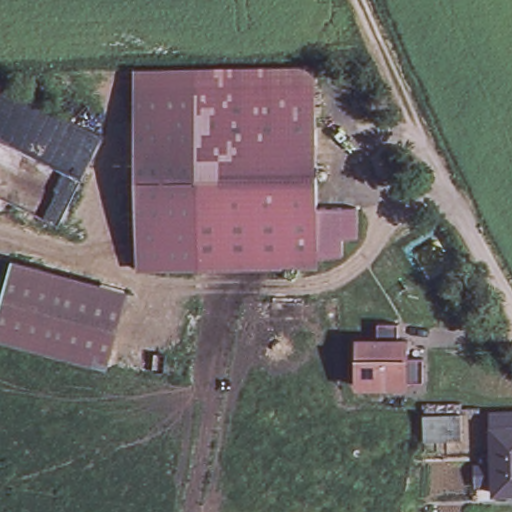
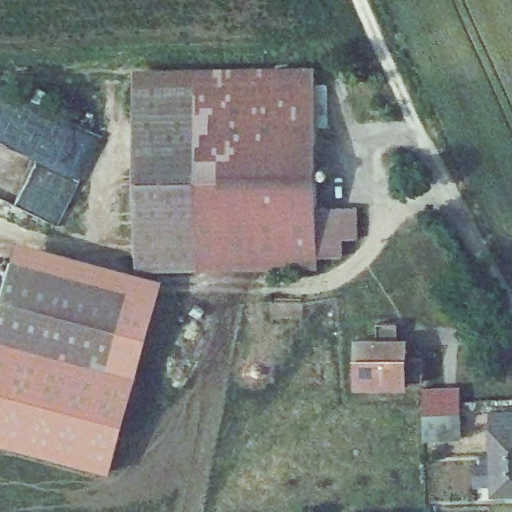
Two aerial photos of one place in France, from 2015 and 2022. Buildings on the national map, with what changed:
unchanged [(317,76),(318,258),(199,259),(198,77),(317,76)]
unchanged [(136,260),(134,77),(198,77),(199,259),(136,260)]
new [(110,369),(122,325),(130,293),(12,262),(18,239),(162,278),(112,471),(0,441),(0,340),(110,369)]
unchanged [(110,369),(0,340),(0,307),(12,262),(130,293),(122,325),(110,369)]
unchanged [(399,325),(399,342),(409,342),(409,359),(424,359),(423,383),(409,383),(408,386),(356,386),(356,342),(378,342),(378,324),(399,325)]
unchanged [(493,408),(512,408),(512,495),(507,494),(506,489),(492,489),(491,424),(491,408),(493,408)]
unchanged [(462,439),(424,440),(424,415),(461,414),(462,439)]

